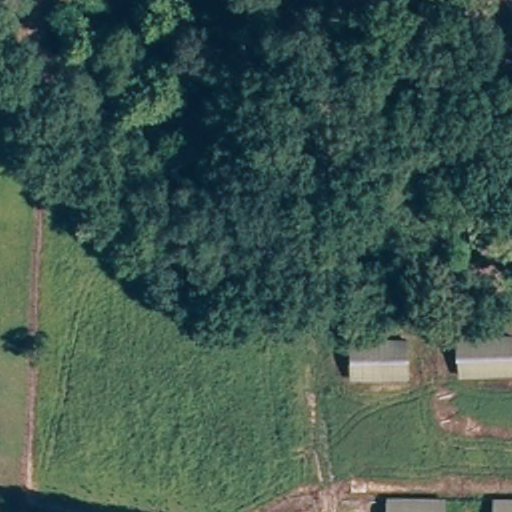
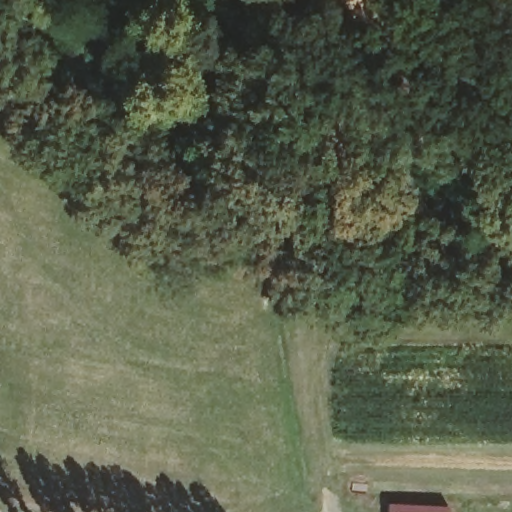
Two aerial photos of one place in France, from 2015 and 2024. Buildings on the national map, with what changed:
demolished [(459,339),(512,338),(512,373),(460,374),(459,339)]
demolished [(352,341),(409,340),(409,375),(353,376),(352,341)]
demolished [(498,497),(512,498),(512,512),(498,512),(498,497)]
unchanged [(392,499),(448,501),(448,512),(392,512),(392,499)]

